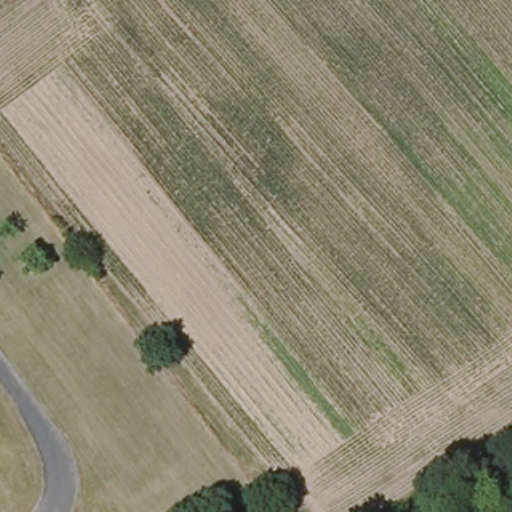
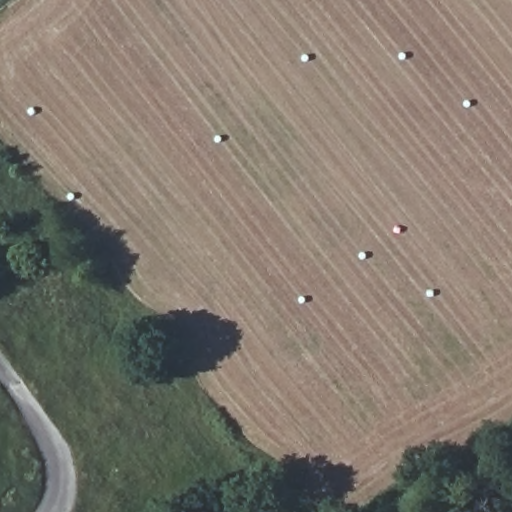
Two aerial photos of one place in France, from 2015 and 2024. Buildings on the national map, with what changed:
[]

